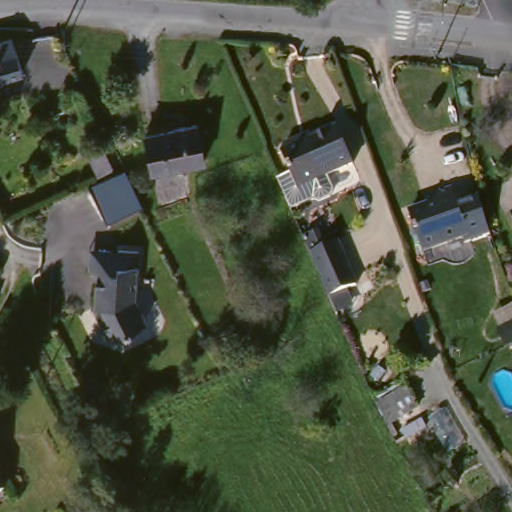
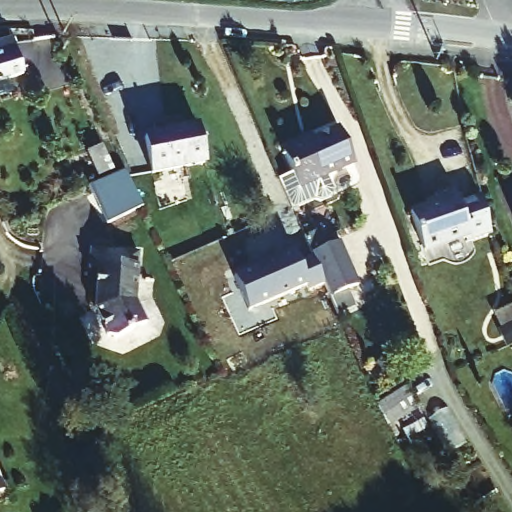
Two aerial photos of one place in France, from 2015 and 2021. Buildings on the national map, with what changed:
unchanged [(0,44),(6,42),(11,40),(22,75),(0,82),(0,44)]
unchanged [(204,164),(151,174),(144,137),(197,127),(204,164)]
unchanged [(353,166),(298,190),(292,178),(282,155),(284,148),(299,142),(301,147),(338,130),(353,166)]
unchanged [(85,154),(100,147),(111,171),(96,178),(85,154)]
unchanged [(106,223),(88,185),(124,168),(143,204),(106,223)]
unchanged [(469,235),(422,251),(409,213),(438,203),(435,194),(453,188),(469,235)]
unchanged [(503,220),(512,217),(512,241),(503,220)]
unchanged [(310,255),(337,243),(356,287),(329,299),(310,255)]
new [(258,266),(257,263),(290,249),(297,262),(311,257),(323,284),(308,290),(305,285),(247,311),(232,277),(258,266)]
unchanged [(121,284),(119,307),(130,329),(100,344),(92,341),(79,315),(81,276),(73,276),(74,255),(102,257),(122,258),(121,284)]

